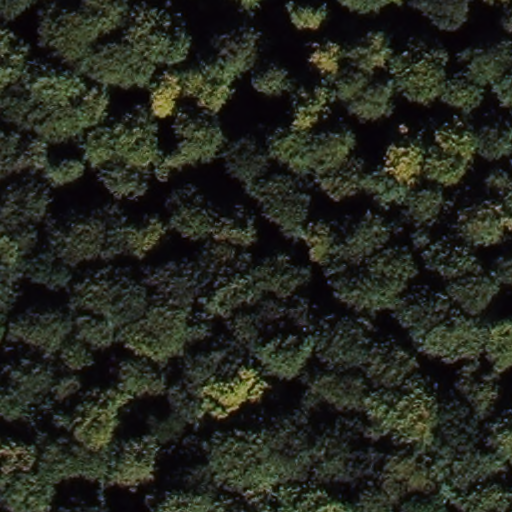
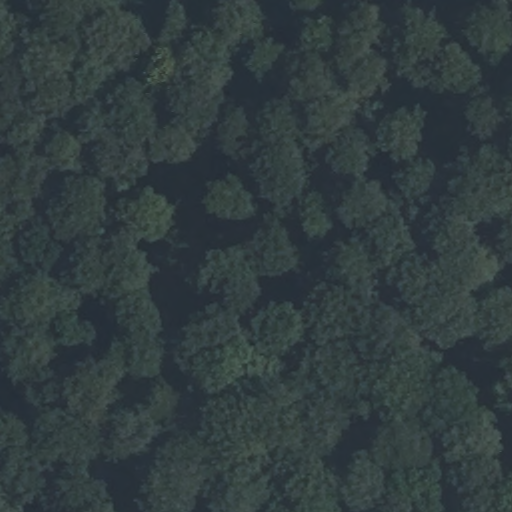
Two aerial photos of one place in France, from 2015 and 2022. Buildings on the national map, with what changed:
[]

